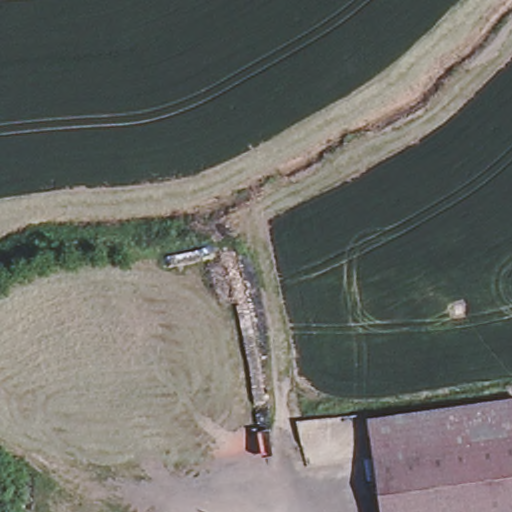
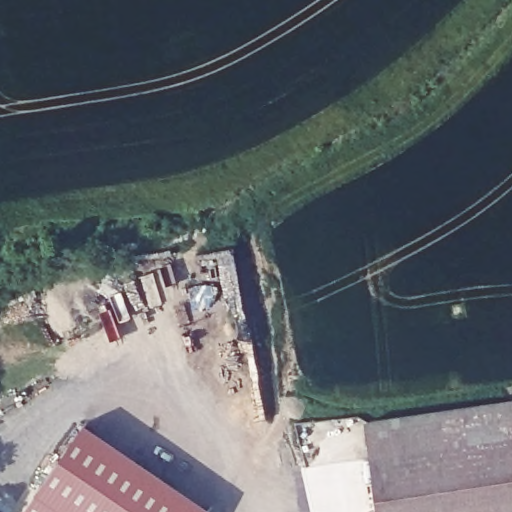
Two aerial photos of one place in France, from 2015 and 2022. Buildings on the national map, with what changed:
unchanged [(512,512),(379,512),(365,422),(512,401),(512,512)]
new [(212,507),(209,512),(25,512),(24,511),(88,421),(212,507)]

